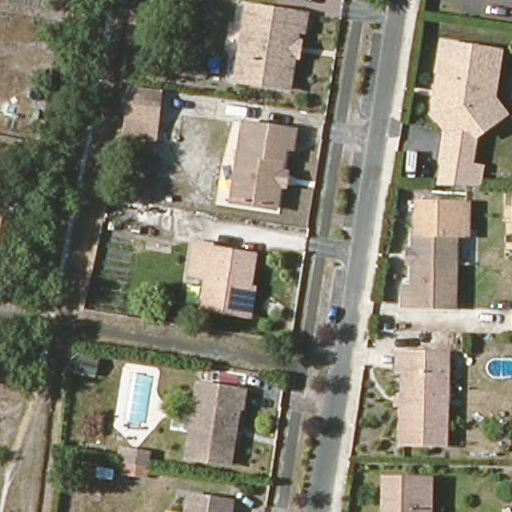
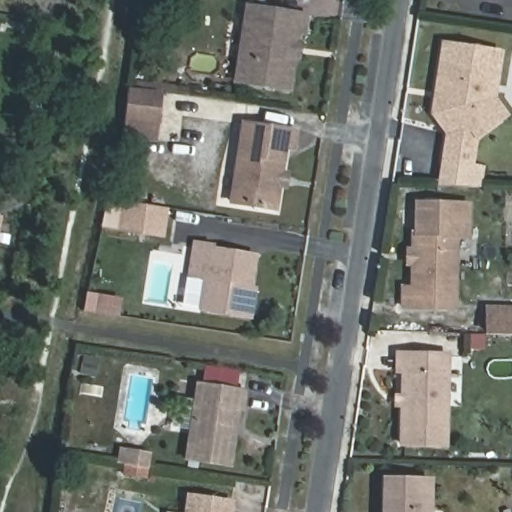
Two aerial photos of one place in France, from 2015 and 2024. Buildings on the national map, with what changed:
unchanged [(299,61),(294,94),(241,85),(253,10),(312,20),(309,37),(303,36),(301,48),(305,48),(303,62),(299,61)]
unchanged [(472,164),(444,160),(448,133),(433,113),(435,102),(437,90),(444,43),(489,50),(501,52),(493,98),(506,114),(496,121),(476,136),(472,164)]
unchanged [(131,135),(133,119),(137,95),(138,89),(138,88),(170,92),(166,124),(163,140),(131,135)]
unchanged [(283,190),(279,214),(236,207),(249,128),(300,136),(297,152),(290,150),(285,179),(291,179),(289,191),(283,190)]
new [(102,229),(106,199),(169,208),(165,238),(114,231),(102,229)]
unchanged [(0,248),(0,211),(7,212),(0,248)]
unchanged [(461,233),(459,308),(408,306),(409,287),(418,287),(418,266),(413,265),(413,248),(419,248),(419,232),(461,233)]
unchanged [(251,320),(207,313),(213,283),(195,280),(201,249),(219,252),(218,254),(261,262),(255,295),(262,296),(257,322),(251,320)]
unchanged [(446,439),(403,439),(405,348),(449,349),(446,439)]
unchanged [(230,464),(187,458),(198,384),(245,391),(242,408),(238,408),(230,464)]
unchanged [(148,467),(133,464),(125,464),(123,463),(119,463),(121,449),(127,451),(150,454),(148,467)]
unchanged [(389,478),(436,479),(434,512),(388,512),(389,478)]
unchanged [(231,512),(186,512),(189,496),(232,502),(231,512)]

